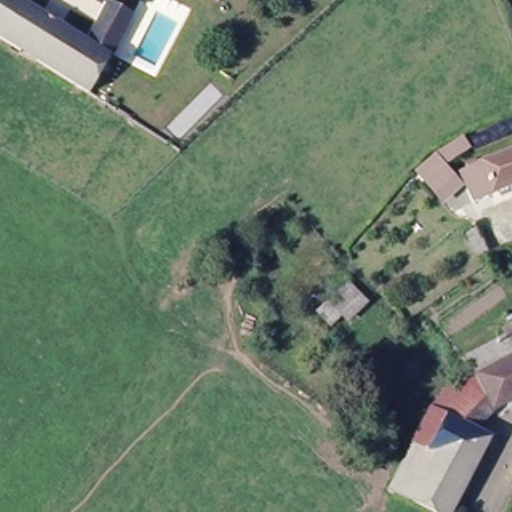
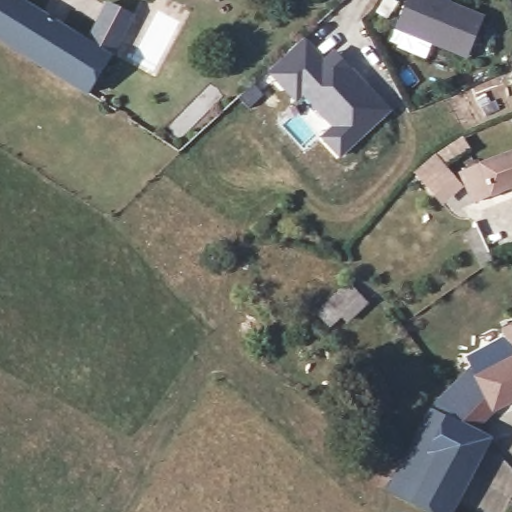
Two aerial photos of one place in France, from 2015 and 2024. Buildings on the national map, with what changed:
unchanged [(90,41),(112,7),(136,21),(95,96),(0,35),(0,0),(21,0),(90,41)]
new [(397,26),(408,0),(444,0),(463,9),(485,17),(467,57),(432,41),(431,42),(420,53),(398,44),(405,30),(397,26)]
new [(336,144),(327,135),(338,124),(307,91),(300,97),(285,82),(272,67),(306,36),(327,59),(337,49),(352,65),(383,97),(392,107),(345,152),(336,144)]
unchanged [(462,172),(442,193),(423,174),(418,169),(439,149),(462,172)]
unchanged [(470,173),(512,156),(512,191),(482,204),(470,173)]
unchanged [(368,298),(348,319),(338,308),(331,301),(350,281),(368,298)]
unchanged [(456,391),(473,372),(469,363),(508,342),(503,333),(512,329),(512,404),(496,413),(475,435),(490,444),(456,512),(424,512),(389,493),(405,465),(432,415),(456,391)]

